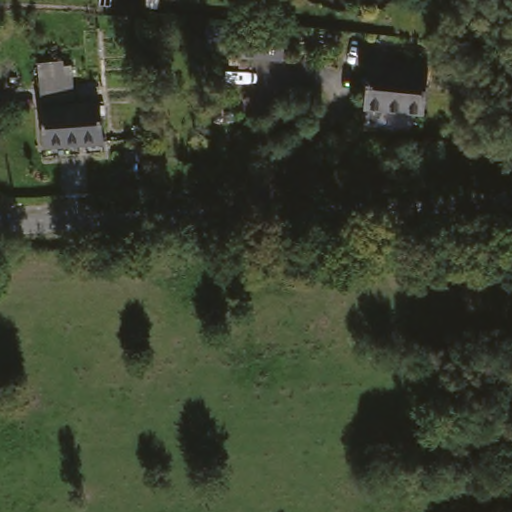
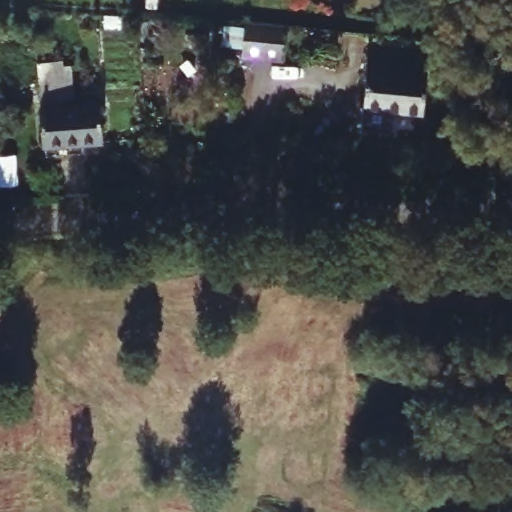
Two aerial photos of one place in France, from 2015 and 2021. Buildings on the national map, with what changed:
unchanged [(277,69),(237,66),(239,47),(239,40),(278,42),(278,49),(277,55),(277,69)]
unchanged [(431,125),(368,121),(371,84),(373,67),(392,69),(435,73),(431,125)]
unchanged [(95,143),(39,146),(37,110),(36,81),(52,80),(51,73),(66,72),(67,109),(93,108),(95,143)]

